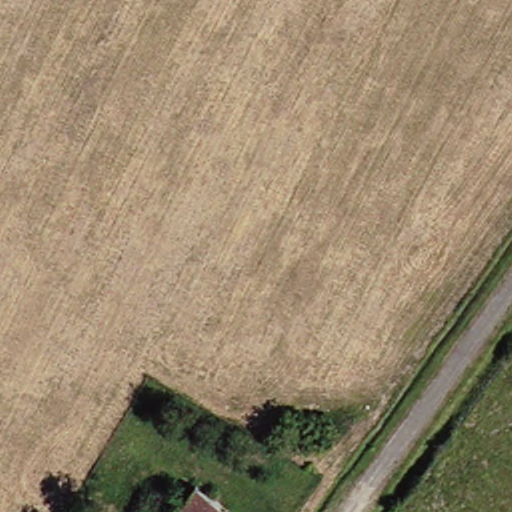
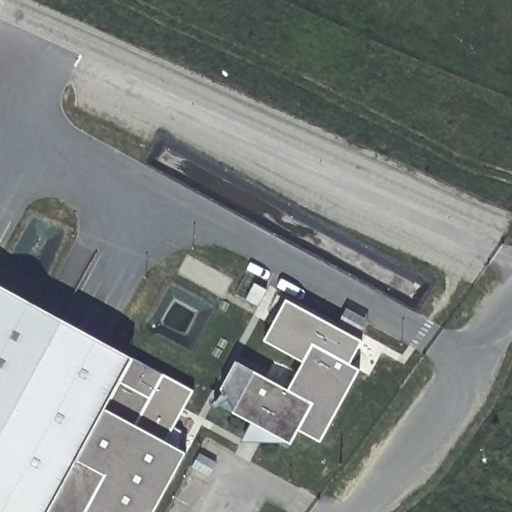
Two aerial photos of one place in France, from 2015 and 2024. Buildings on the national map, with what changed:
new [(137,357),(162,371),(132,425),(185,453),(153,512),(0,512),(0,290),(133,365),(137,357)]
new [(237,362),(256,372),(293,305),(362,348),(349,370),(360,377),(321,445),(300,433),(292,446),(215,404),(237,362)]
new [(291,446),(244,447),(255,426),(291,446)]
demolished [(190,488),(215,507),(221,512),(174,512),(190,488)]

